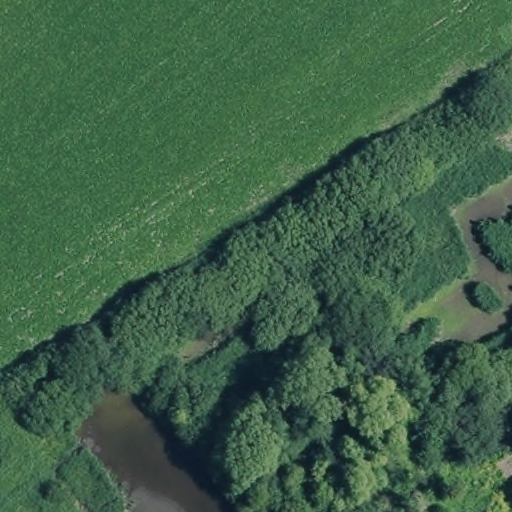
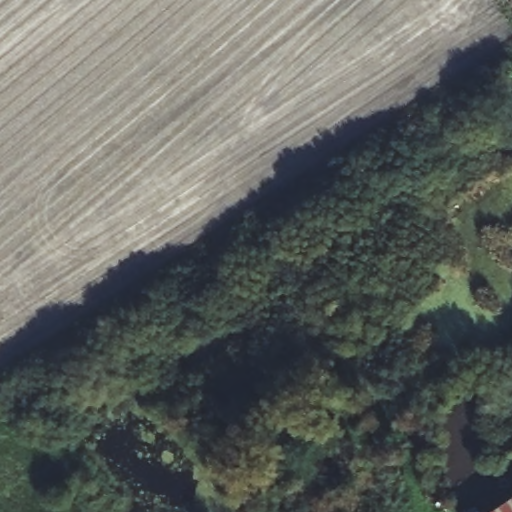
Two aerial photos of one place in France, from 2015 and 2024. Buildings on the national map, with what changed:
new [(512,495),(512,512),(487,512),(512,495)]

